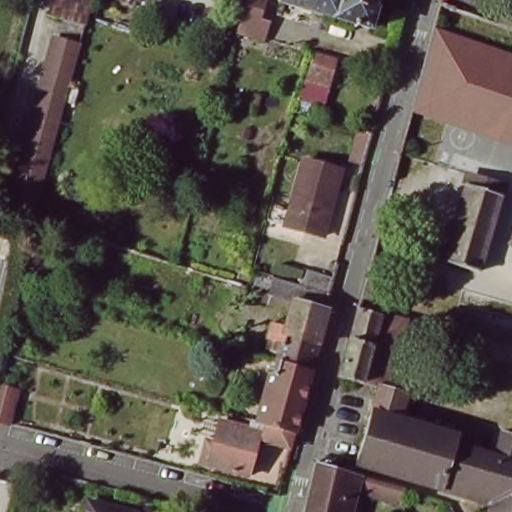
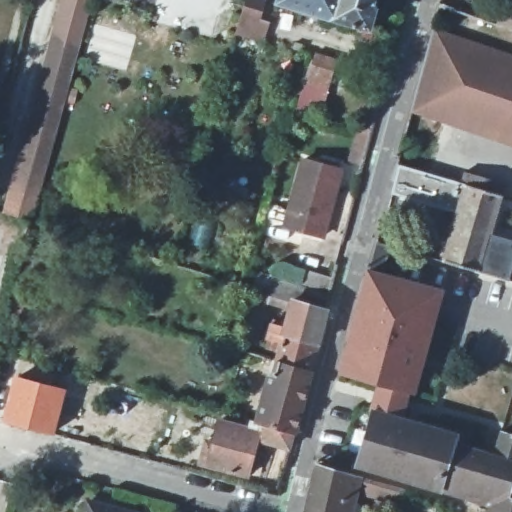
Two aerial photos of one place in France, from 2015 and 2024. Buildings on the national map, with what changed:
new [(88,0),(77,38),(51,32),(60,0),(88,0)]
unchanged [(240,30),(248,0),(263,0),(259,15),(267,18),(262,36),(250,33),(240,30)]
unchanged [(282,0),(314,0),(312,9),(282,0)]
unchanged [(377,7),(370,27),(312,9),(314,0),(376,0),(374,6),(377,7)]
unchanged [(512,3),(512,27),(501,23),(507,5),(508,1),(512,3)]
unchanged [(412,114),(436,28),(512,54),(512,146),(412,114)]
unchanged [(62,94),(62,95),(38,178),(26,213),(2,207),(23,134),(45,54),(51,32),(77,38),(62,94)]
unchanged [(330,84),(311,79),(318,52),(337,57),(330,84)]
unchanged [(287,225),(306,160),(342,170),(323,235),(287,225)]
unchanged [(446,260),(468,183),(502,192),(492,224),(480,269),(446,260)]
unchanged [(10,314),(14,295),(17,283),(23,254),(36,258),(30,286),(23,317),(10,314)]
new [(338,373),(365,267),(445,288),(416,393),(412,392),(390,385),(378,382),(338,373)]
unchanged [(275,356),(279,340),(267,337),(272,319),(284,322),(287,306),(268,300),(244,294),(243,280),(252,283),(257,268),(302,281),(331,290),(321,329),(312,367),(275,356)]
demolished [(361,380),(340,375),(351,334),(358,310),(379,315),(361,380)]
unchanged [(312,367),(310,378),(309,384),(300,422),(299,427),(297,432),(250,419),(251,415),(259,417),(275,356),(312,367)]
unchanged [(404,418),(460,432),(458,442),(495,451),(502,430),(512,433),(512,491),(511,495),(512,495),(512,512),(487,512),(486,511),(488,504),(481,502),(445,490),(403,477),(365,466),(357,463),(356,463),(378,385),(378,382),(390,385),(412,392),(404,418)]
unchanged [(0,419),(0,383),(15,387),(8,421),(0,419)]
unchanged [(297,432),(294,445),(258,436),(249,472),(203,461),(209,439),(216,440),(222,420),(248,426),(250,419),(297,432)]
unchanged [(312,491),(318,464),(403,490),(400,503),(357,491),(351,512),(307,512),(312,491)]
unchanged [(92,500),(136,512),(89,512),(92,500)]

